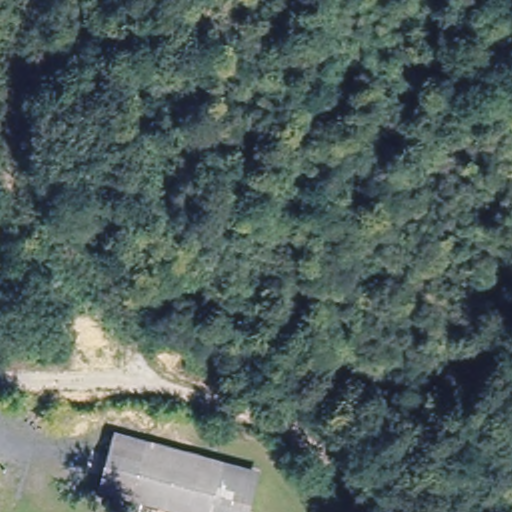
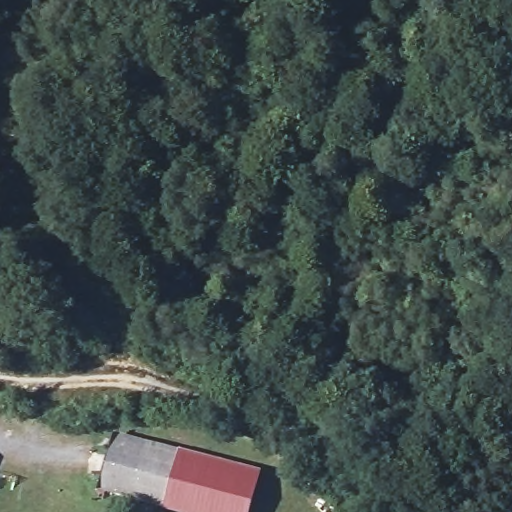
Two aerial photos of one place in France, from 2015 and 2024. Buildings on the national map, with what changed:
unchanged [(116,433),(258,475),(247,512),(162,512),(100,493),(116,433)]

